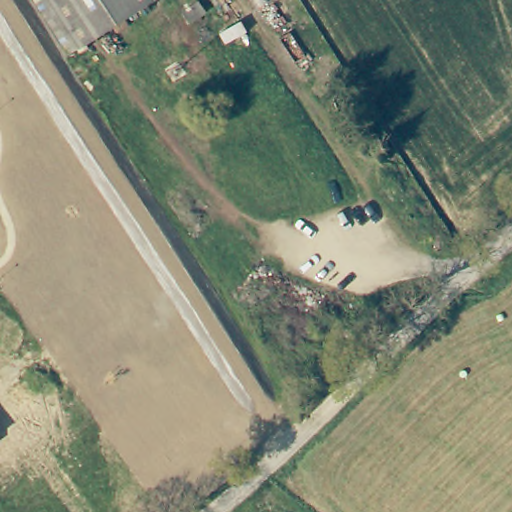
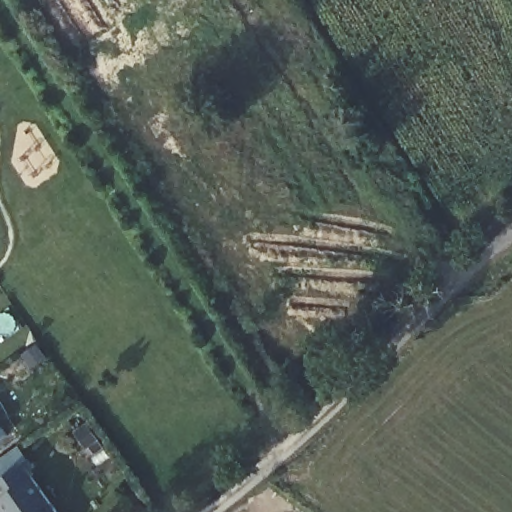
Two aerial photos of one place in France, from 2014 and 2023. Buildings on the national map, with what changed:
unchanged [(35,0),(157,0),(70,56),(35,0)]
new [(0,505),(0,502),(5,498),(0,492),(0,482),(24,465),(59,512),(5,512),(0,505)]

